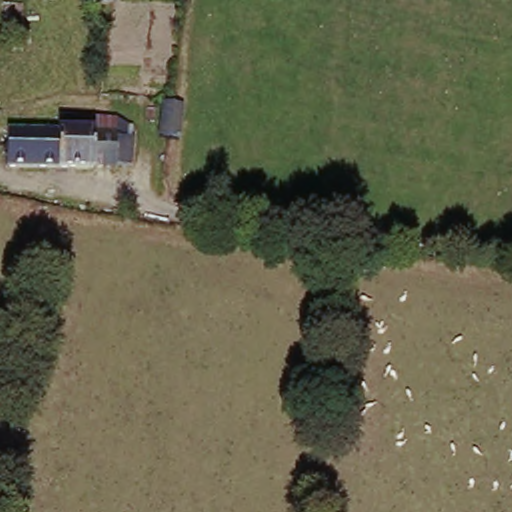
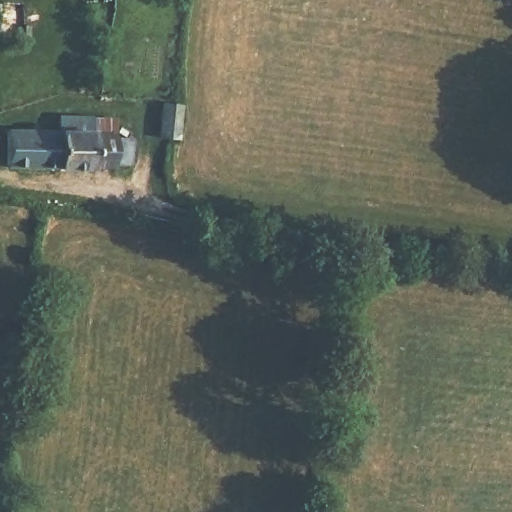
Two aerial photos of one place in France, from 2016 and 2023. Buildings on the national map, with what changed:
unchanged [(116,172),(9,171),(10,135),(56,137),(55,120),(117,122),(116,128),(134,127),(135,172),(116,172)]

